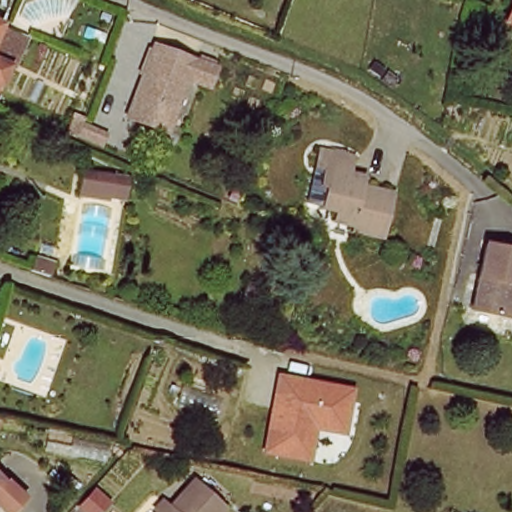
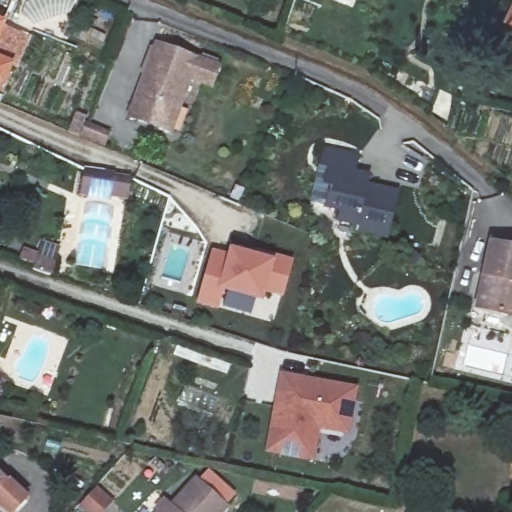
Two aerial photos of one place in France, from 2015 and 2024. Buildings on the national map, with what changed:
unchanged [(510,21),(512,17),(512,22),(510,21)]
unchanged [(0,57),(0,27),(12,33),(0,57)]
unchanged [(202,63),(170,136),(128,118),(158,44),(202,63)]
unchanged [(387,232),(350,227),(352,221),(332,217),(335,208),(319,202),(323,185),(319,183),(321,165),(316,163),(319,145),(358,154),(355,171),(363,173),(373,175),(370,186),(395,193),(387,232)]
unchanged [(130,174),(125,208),(76,200),(81,167),(130,174)]
new [(211,251),(230,255),(232,247),(255,254),(257,249),(294,261),(284,298),(268,293),(265,304),(225,293),(220,311),(197,304),(211,251)]
unchanged [(512,251),(512,323),(480,317),(495,247),(512,251)]
unchanged [(47,281),(14,271),(21,252),(54,260),(47,281)]
unchanged [(280,373),(358,388),(350,435),(321,430),(315,462),(267,451),(280,373)]
unchanged [(18,501),(2,492),(0,495),(0,470),(27,483),(18,501)]
unchanged [(225,510),(223,512),(154,512),(164,502),(167,506),(194,479),(225,510)]

